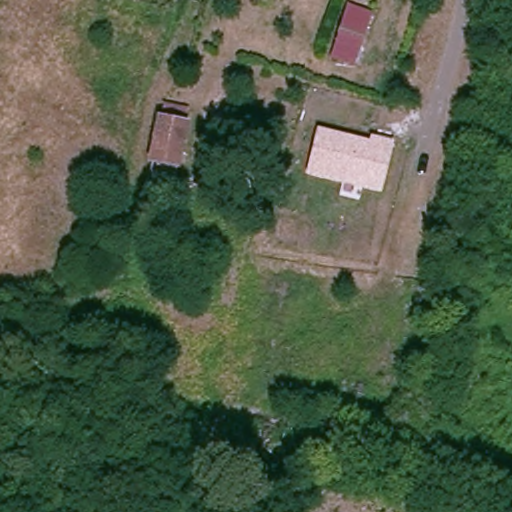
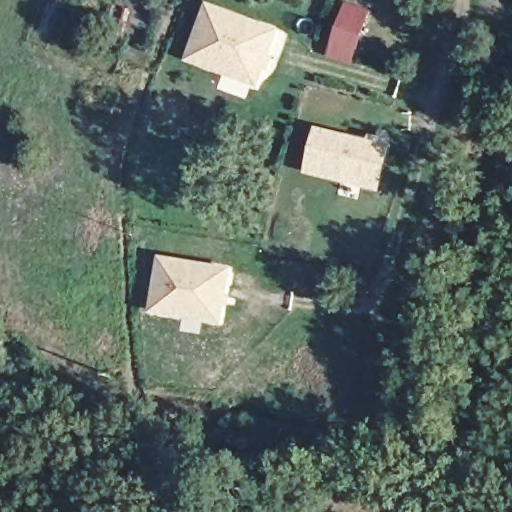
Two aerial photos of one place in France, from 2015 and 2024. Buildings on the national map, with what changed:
unchanged [(328,52),(341,16),(345,3),(368,11),(363,24),(352,62),(328,52)]
new [(186,62),(207,4),(281,30),(258,89),(186,62)]
new [(152,112),(187,118),(178,166),(145,160),(152,112)]
demolished [(144,187),(158,117),(181,122),(184,122),(170,194),(158,191),(144,187)]
unchanged [(318,129),(369,141),(371,134),(395,140),(381,192),(305,175),(318,129)]
demolished [(151,247),(180,252),(175,289),(148,283),(151,247)]
new [(159,256),(233,267),(224,327),(150,313),(159,256)]

